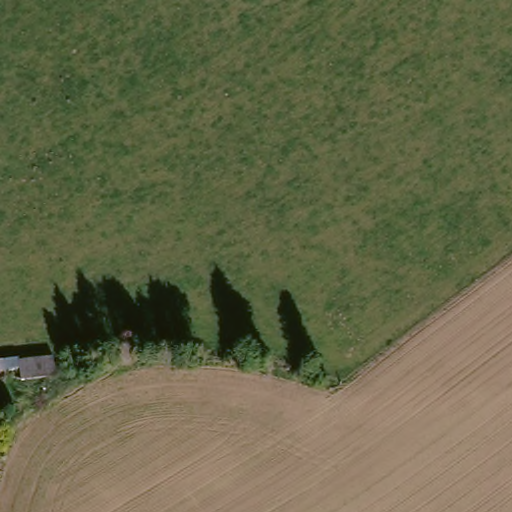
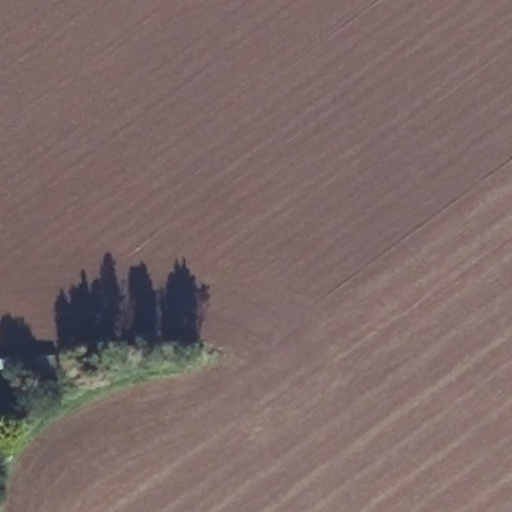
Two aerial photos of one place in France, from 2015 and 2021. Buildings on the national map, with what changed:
unchanged [(23,360),(54,359),(57,377),(22,380),(23,360)]

